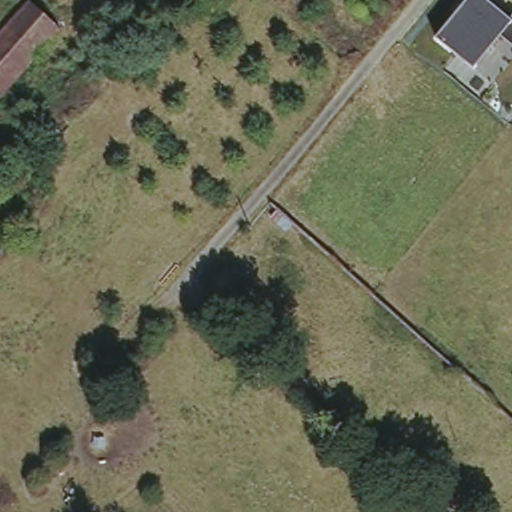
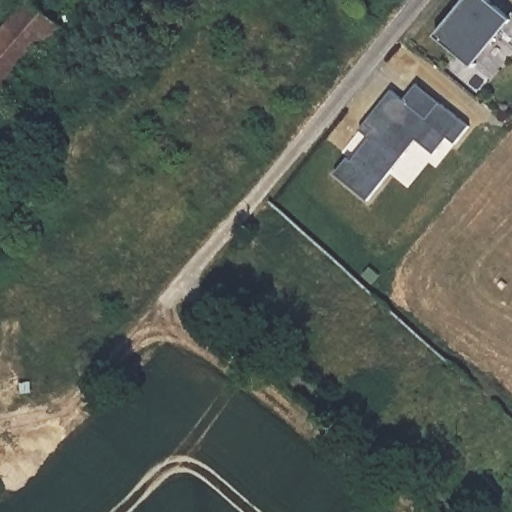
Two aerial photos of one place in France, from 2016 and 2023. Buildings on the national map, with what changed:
unchanged [(61,27),(0,95),(0,34),(31,0),(61,27)]
demolished [(358,0),(397,0),(399,3),(372,27),(351,7),(358,0)]
unchanged [(508,18),(512,14),(512,45),(501,36),(475,69),(437,38),(466,0),(488,0),(508,18)]
new [(353,162),(371,140),(369,138),(361,132),(365,126),(393,92),(405,101),(418,85),(441,104),(471,128),(457,146),(449,140),(436,156),(418,142),(369,203),(336,176),(349,159),(353,162)]
unchanged [(30,142),(19,156),(0,139),(0,132),(9,123),(30,142)]
unchanged [(0,178),(0,150),(14,164),(0,178)]

